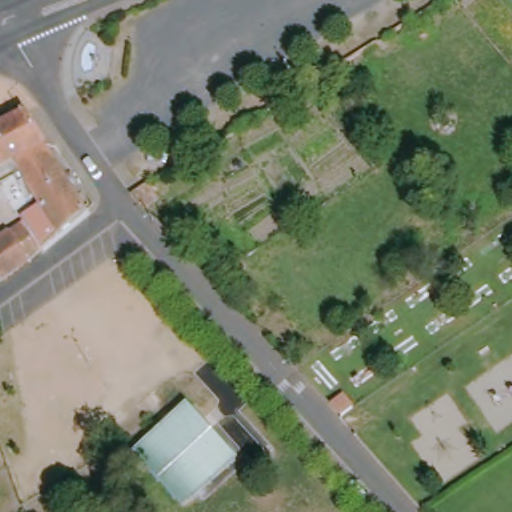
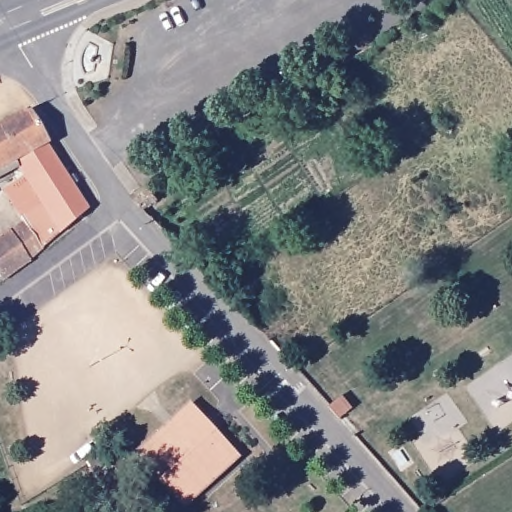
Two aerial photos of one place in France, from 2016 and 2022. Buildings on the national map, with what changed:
unchanged [(22,111),(41,142),(11,160),(0,167),(0,124),(22,111)]
unchanged [(25,225),(20,217),(39,206),(18,171),(11,160),(41,142),(64,176),(83,207),(55,234),(39,249),(0,277),(0,240),(25,225)]
unchanged [(342,396),(353,408),(341,418),(330,406),(342,396)]
unchanged [(174,501),(132,450),(183,409),(225,458),(174,501)]

